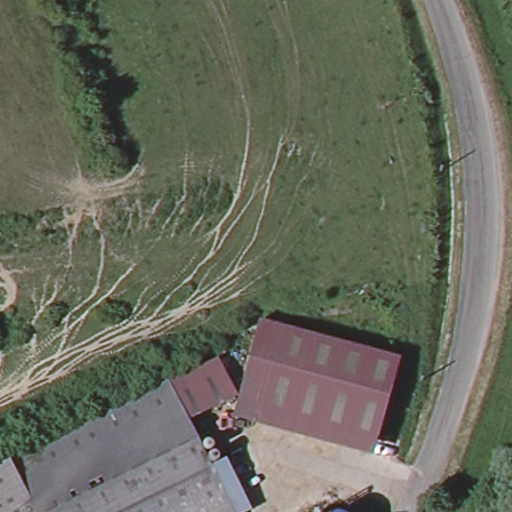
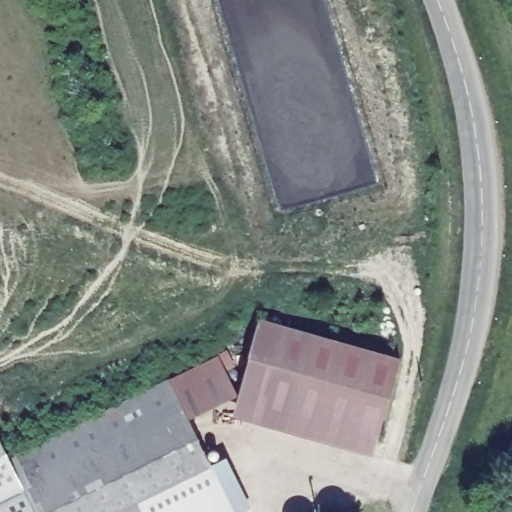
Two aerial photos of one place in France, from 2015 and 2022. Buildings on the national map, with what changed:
unchanged [(261,318),(400,355),(371,454),(235,418),(261,318)]
unchanged [(169,378),(220,352),(238,392),(189,419),(169,378)]
unchanged [(198,446),(231,512),(203,512),(142,392),(166,381),(198,446)]
unchanged [(203,512),(35,512),(8,459),(142,392),(203,512)]
unchanged [(219,458),(226,456),(252,510),(248,512),(231,512),(198,446),(210,440),(219,458)]
unchanged [(8,459),(35,512),(0,512),(0,443),(8,459)]

